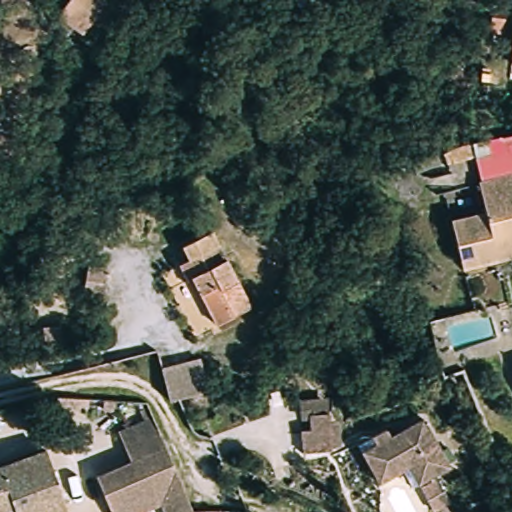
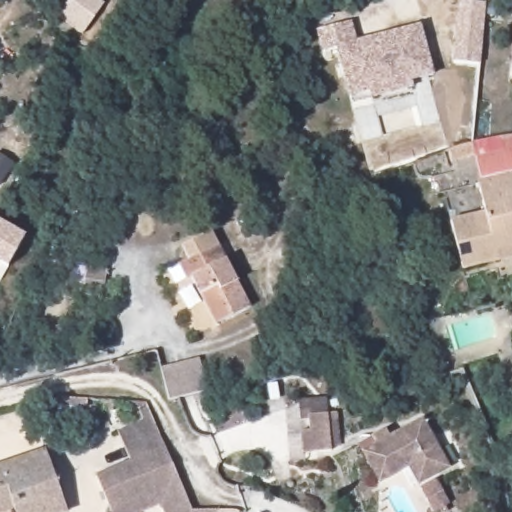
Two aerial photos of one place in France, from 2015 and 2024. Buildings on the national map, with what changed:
unchanged [(87,30),(70,22),(67,28),(57,22),(68,0),(102,0),(87,30)]
new [(294,0),(311,0),(298,7),(294,0)]
new [(457,1),(487,4),(481,64),(452,61),(457,1)]
new [(367,93),(365,87),(345,91),(333,44),(319,47),(313,25),(347,17),(353,42),(353,37),(365,35),(417,22),(428,71),(405,77),(407,84),(367,93)]
unchanged [(447,186),(481,180),(477,155),(512,148),(512,218),(490,222),(492,234),(457,241),(447,186)]
unchanged [(492,234),(490,222),(512,218),(512,256),(463,266),(457,241),(492,234)]
new [(7,270),(0,265),(0,222),(26,237),(7,270)]
unchanged [(219,252),(247,297),(215,315),(188,270),(180,275),(172,260),(201,244),(209,258),(219,252)]
unchanged [(162,398),(153,367),(202,355),(210,386),(170,396),(162,398)]
unchanged [(327,412),(332,450),(298,454),(296,436),(311,434),(308,415),(327,412)]
unchanged [(118,430),(150,422),(161,455),(127,464),(118,430)]
unchanged [(391,432),(393,437),(417,423),(442,467),(420,480),(410,462),(375,482),(362,457),(377,447),(375,442),(391,432)]
unchanged [(0,512),(0,464),(46,451),(65,512),(41,512),(38,501),(0,512)]
unchanged [(177,508),(202,508),(201,512),(150,512),(146,500),(112,510),(101,471),(127,464),(161,455),(177,508)]
unchanged [(422,485),(438,475),(452,497),(447,500),(450,505),(445,507),(442,503),(435,506),(422,485)]
unchanged [(41,512),(0,512),(38,501),(41,512)]

